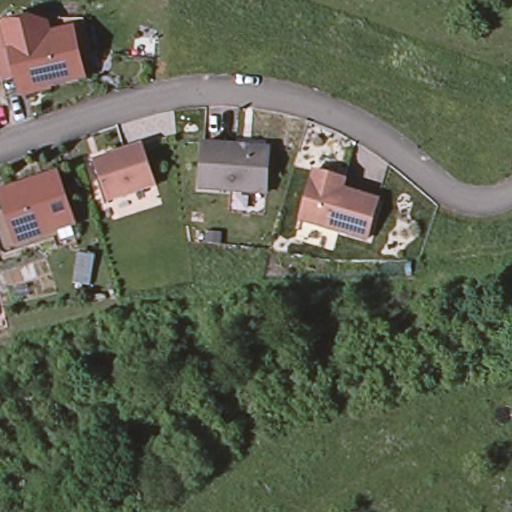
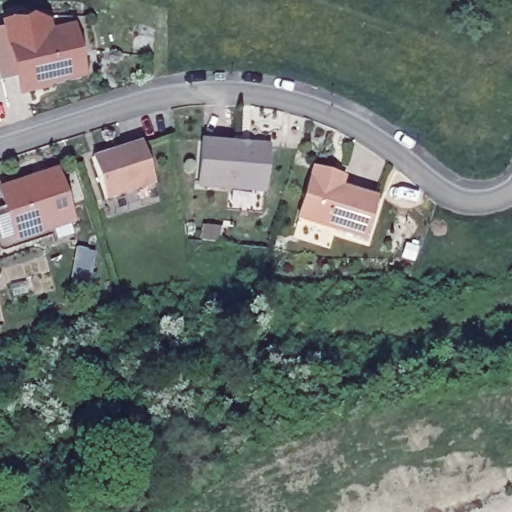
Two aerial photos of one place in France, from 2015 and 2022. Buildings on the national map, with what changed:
unchanged [(7,42),(2,16),(20,12),(23,6),(37,3),(43,7),(47,27),(83,19),(91,57),(56,65),(57,69),(33,74),(15,78),(7,42)]
unchanged [(267,142),(263,188),(197,182),(201,138),(267,142)]
unchanged [(142,140),(155,181),(105,197),(92,156),(142,140)]
unchanged [(5,241),(0,227),(0,226),(17,220),(3,182),(55,163),(74,216),(5,241)]
unchanged [(365,232),(298,213),(312,165),(332,170),(342,173),(340,182),(375,192),(365,232)]
unchanged [(75,278),(80,249),(95,251),(90,281),(75,278)]

